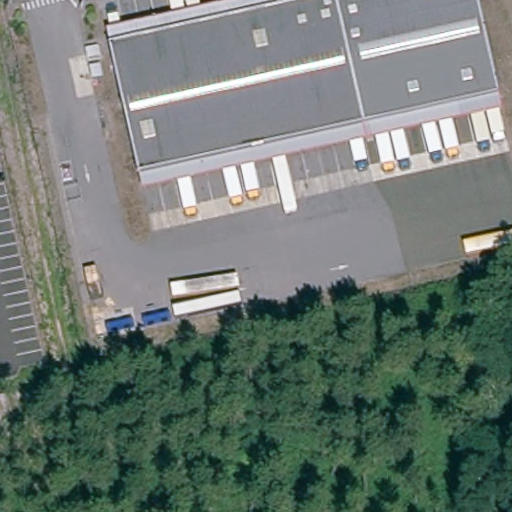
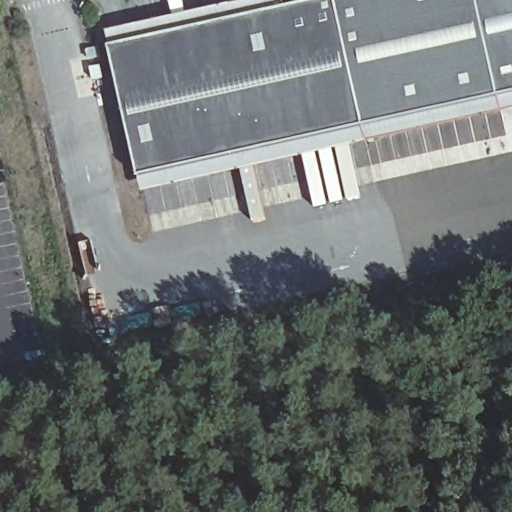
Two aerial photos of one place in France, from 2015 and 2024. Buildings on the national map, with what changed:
unchanged [(284,9),(282,0),(478,0),(500,99),(365,129),(140,179),(111,47),(284,9)]
new [(478,0),(512,0),(512,96),(500,99),(478,0)]

